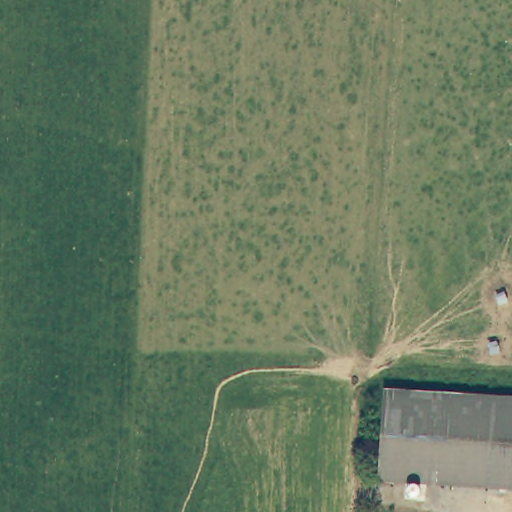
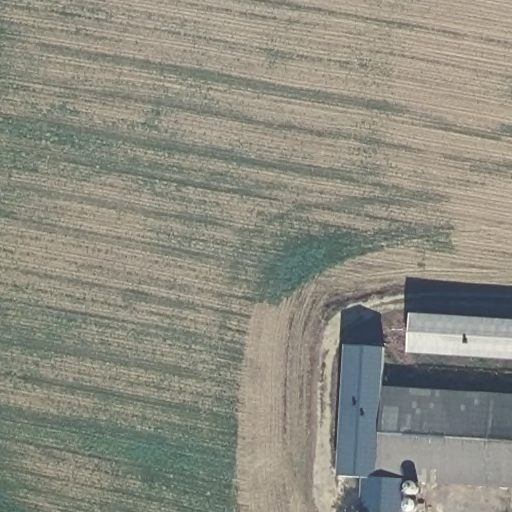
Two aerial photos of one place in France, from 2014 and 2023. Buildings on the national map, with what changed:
new [(410,354),(412,315),(512,321),(512,361),(410,354)]
new [(419,477),(416,512),(360,512),(362,477),(337,476),(346,347),(385,348),(383,386),(391,387),(384,475),(419,477)]
unchanged [(384,475),(391,387),(512,396),(512,484),(456,480),(384,475)]

